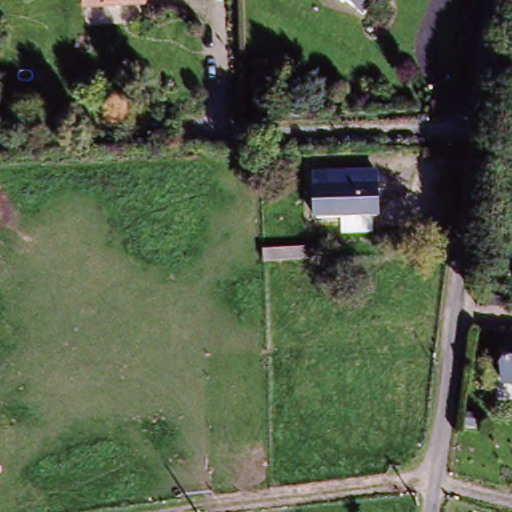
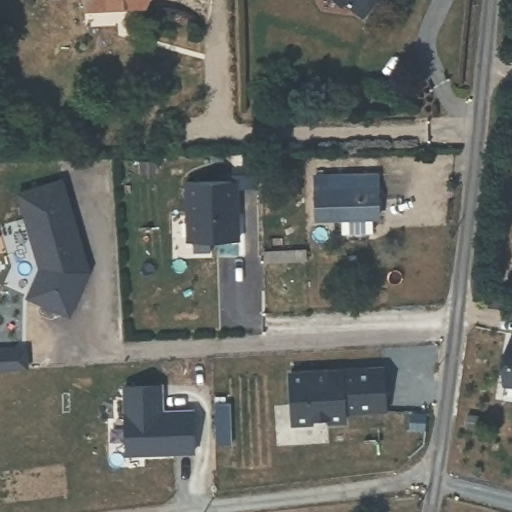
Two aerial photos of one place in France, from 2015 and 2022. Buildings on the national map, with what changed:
unchanged [(149,8),(88,13),(87,0),(149,0),(149,8)]
unchanged [(343,2),(340,0),(346,0),(343,2)]
unchanged [(368,15),(351,0),(381,0),(368,15)]
demolished [(0,164),(2,217),(0,218),(0,164)]
unchanged [(379,171),(380,214),(321,217),(320,173),(379,171)]
new [(63,182),(91,273),(72,317),(29,299),(42,270),(20,195),(63,182)]
new [(235,182),(235,214),(240,214),(241,242),(213,242),(213,237),(195,238),(194,216),(189,216),(188,183),(235,182)]
unchanged [(507,343),(512,344),(512,390),(498,389),(507,343)]
new [(334,369),(383,366),(386,408),(345,411),(346,419),(328,420),(327,416),(313,417),(313,421),(292,422),(289,371),(324,369),(334,369)]
new [(162,384),(164,411),(194,409),(195,453),(124,456),(121,386),(162,384)]

